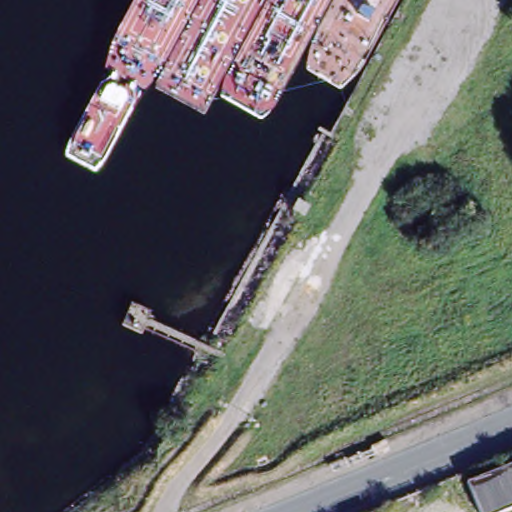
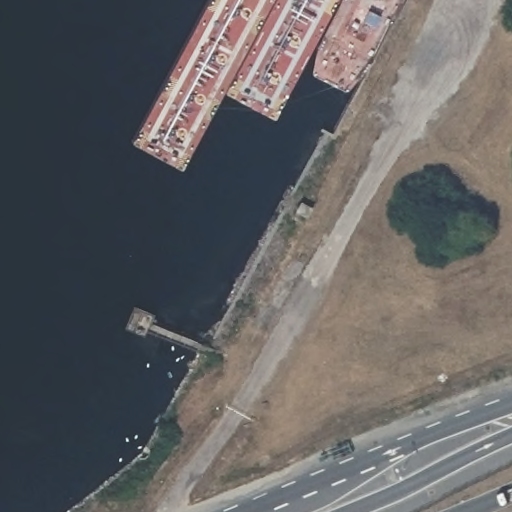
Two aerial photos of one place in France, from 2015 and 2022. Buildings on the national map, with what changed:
demolished [(512,508),(503,512),(478,512),(465,482),(512,462),(512,508)]
demolished [(447,512),(422,512),(416,499),(438,490),(447,512)]

